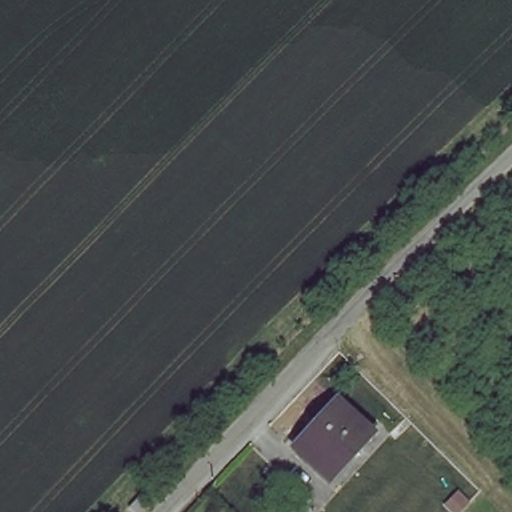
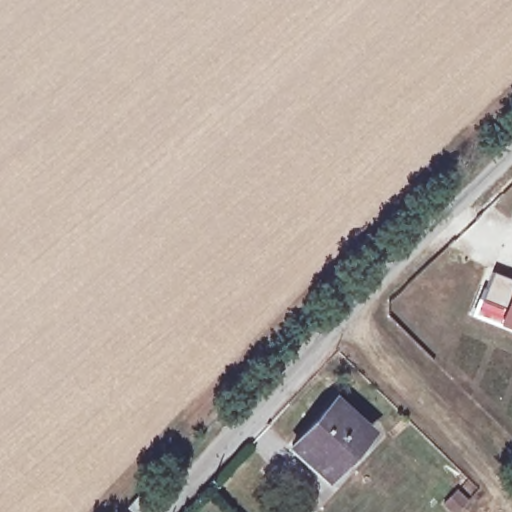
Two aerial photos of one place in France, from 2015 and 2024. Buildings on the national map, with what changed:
new [(504,309),(482,300),(492,272),(512,280),(512,329),(498,323),(504,309)]
unchanged [(335,400),(370,432),(327,479),(291,447),(335,400)]
unchanged [(134,512),(130,508),(141,498),(148,505),(142,512),(134,512)]

